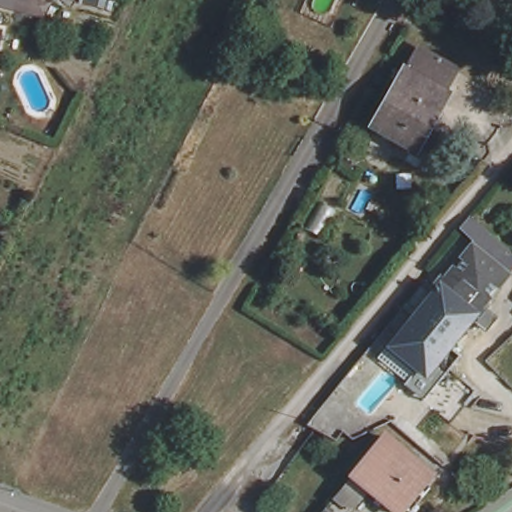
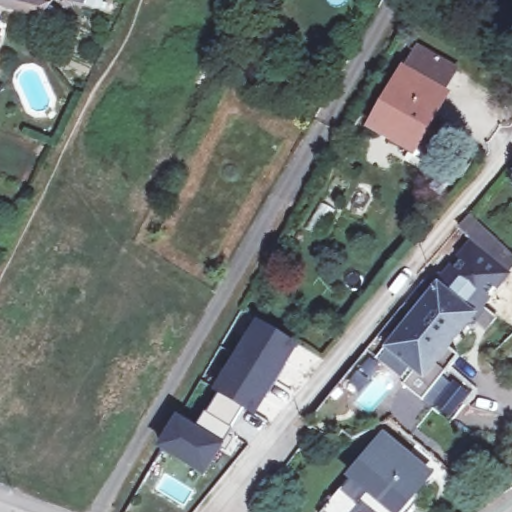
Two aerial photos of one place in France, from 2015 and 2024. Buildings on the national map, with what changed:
unchanged [(49,1),(42,16),(15,8),(19,0),(43,0),(49,1)]
unchanged [(0,35),(0,31),(1,31),(0,35)]
unchanged [(442,95),(413,148),(375,125),(405,74),(442,95)]
unchanged [(419,370),(391,347),(420,311),(474,243),(469,237),(459,227),(468,215),(479,225),(512,257),(512,267),(472,316),(445,350),(425,375),(419,370)]
new [(255,318),(296,343),(277,376),(252,415),(243,410),(217,394),(212,391),(255,318)]
new [(457,372),(479,389),(461,411),(440,394),(457,372)]
new [(217,394),(243,410),(225,443),(196,425),(217,394)]
new [(176,414),(196,425),(225,443),(202,477),(156,447),(176,414)]
unchanged [(425,476),(396,512),(386,512),(346,479),(380,439),(425,476)]
unchanged [(434,483),(409,512),(396,512),(425,476),(434,483)]
unchanged [(346,479),(386,512),(328,512),(322,507),(326,503),(346,479)]

